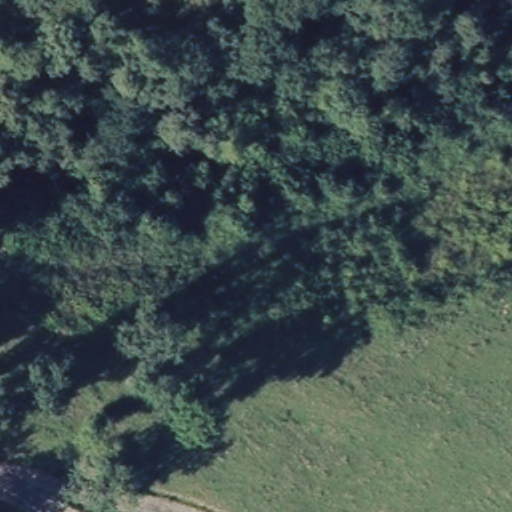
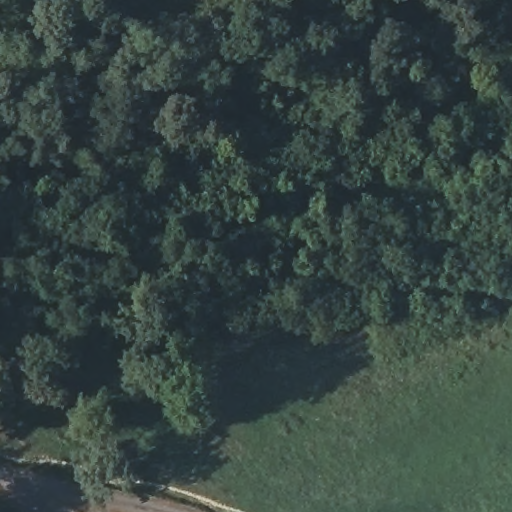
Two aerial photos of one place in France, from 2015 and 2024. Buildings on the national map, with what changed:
[]

